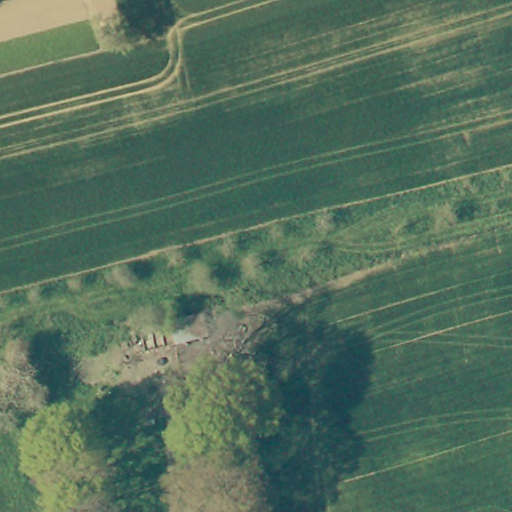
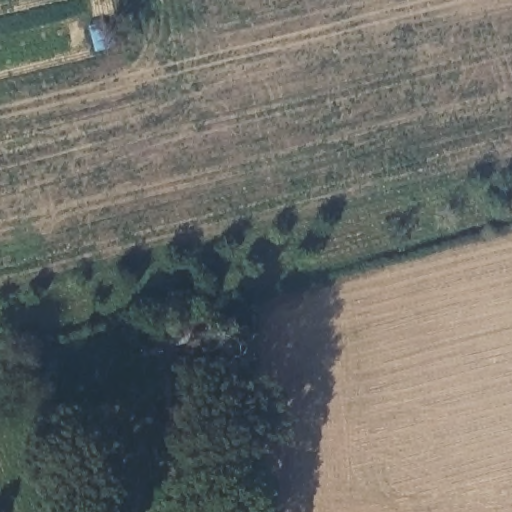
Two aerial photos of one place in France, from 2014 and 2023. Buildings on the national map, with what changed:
unchanged [(175,334),(205,326),(211,346),(180,353),(175,334)]

